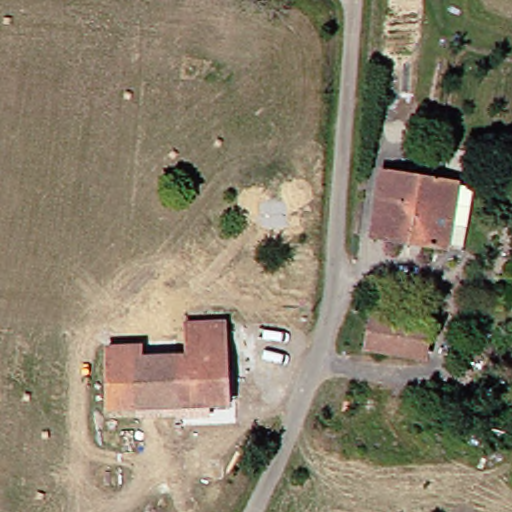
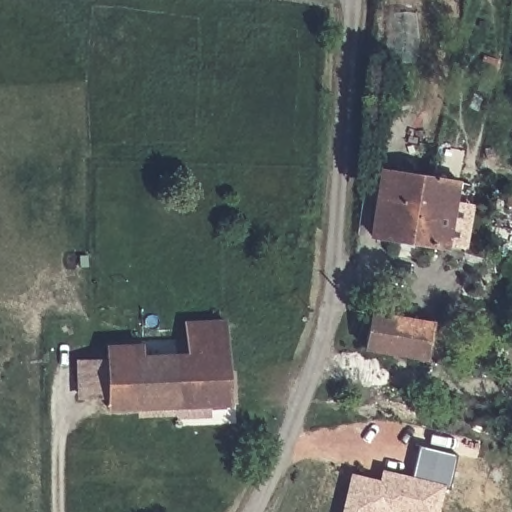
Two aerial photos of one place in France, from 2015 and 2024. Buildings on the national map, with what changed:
unchanged [(441,246),(362,235),(373,167),(452,179),(441,246)]
unchanged [(362,347),(367,312),(428,320),(423,355),(362,347)]
unchanged [(99,407),(97,345),(134,343),(134,356),(182,355),(181,321),(220,321),(222,404),(99,407)]
new [(438,512),(341,512),(351,472),(380,479),(382,468),(417,477),(422,448),(455,456),(447,485),(445,487),(438,512)]

